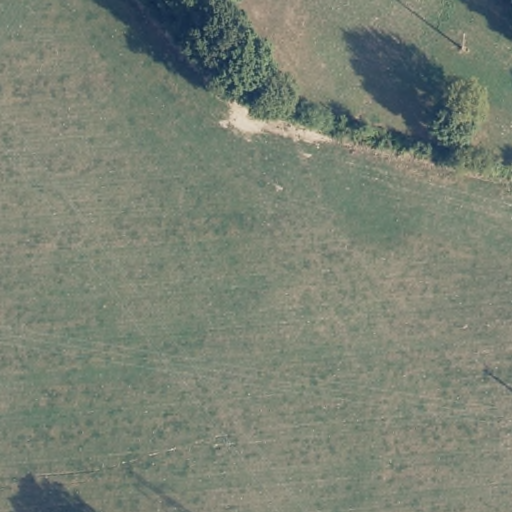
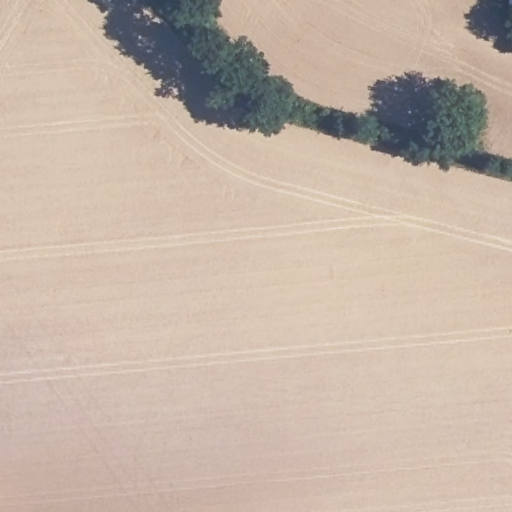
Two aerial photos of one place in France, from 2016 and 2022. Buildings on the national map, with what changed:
unchanged [(512,0),(512,6),(510,5),(512,0)]

